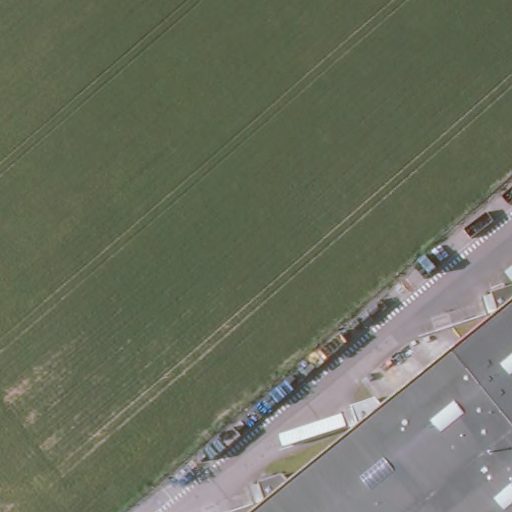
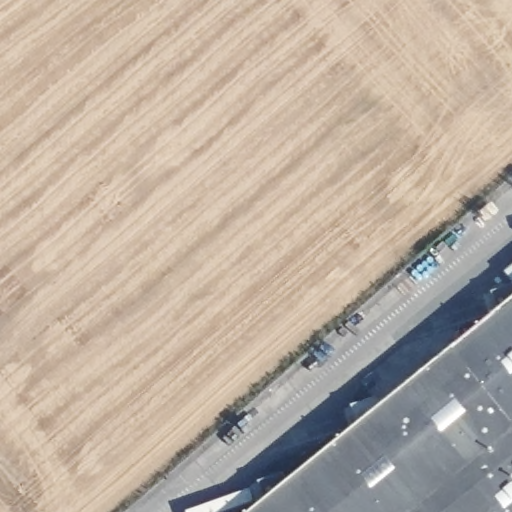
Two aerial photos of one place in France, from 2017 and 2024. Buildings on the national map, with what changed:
unchanged [(512,260),(512,270),(507,264),(512,260)]
unchanged [(267,475),(290,463),(298,471),(362,418),(358,400),(380,390),(388,398),(500,307),(497,287),(512,280),(512,512),(247,512),(270,493),(267,475)]

